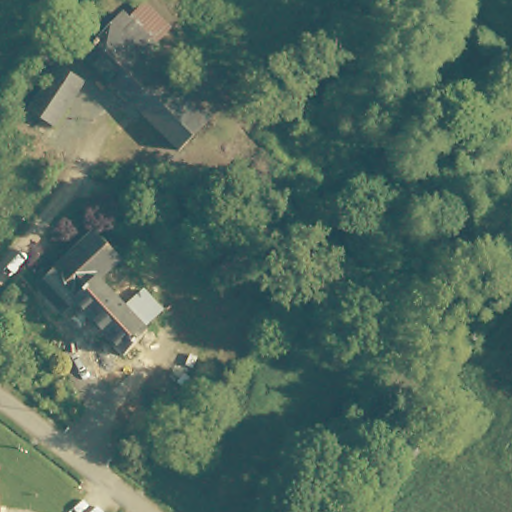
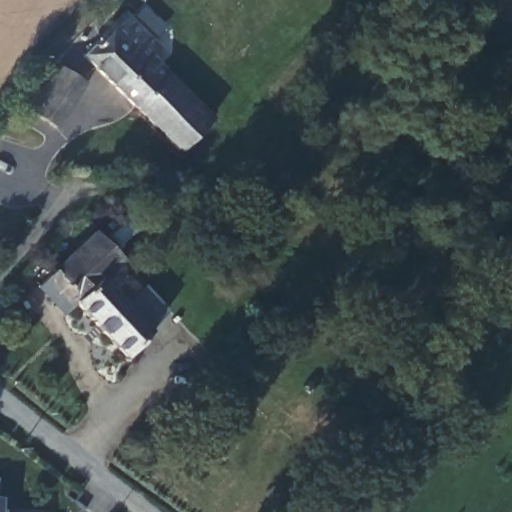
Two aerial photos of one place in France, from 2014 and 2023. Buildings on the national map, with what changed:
unchanged [(116,10),(129,22),(152,42),(142,51),(224,135),(191,168),(173,150),(75,52),(116,10)]
unchanged [(27,111),(56,65),(66,72),(84,85),(54,127),(27,111)]
unchanged [(95,233),(117,257),(97,275),(146,328),(121,353),(73,300),(61,310),(37,285),(95,233)]
unchanged [(164,310),(146,328),(97,275),(117,257),(164,310)]

